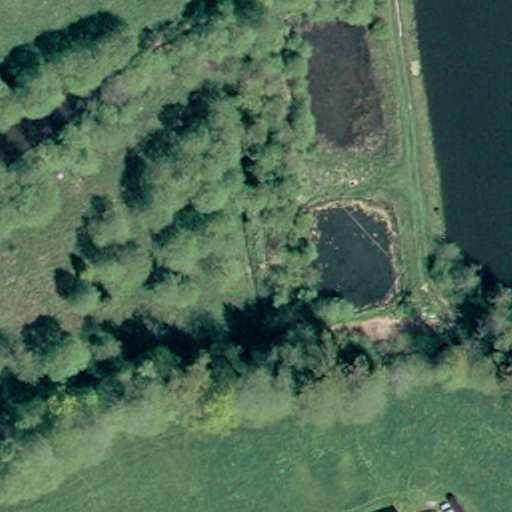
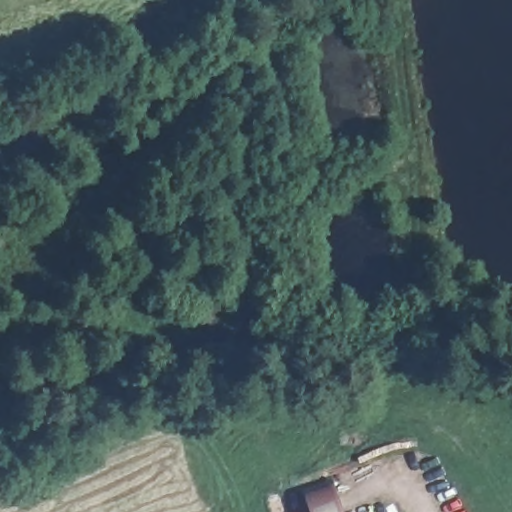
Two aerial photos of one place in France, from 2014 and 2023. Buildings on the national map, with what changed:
new [(332,482),(344,512),(309,512),(303,492),(332,482)]

